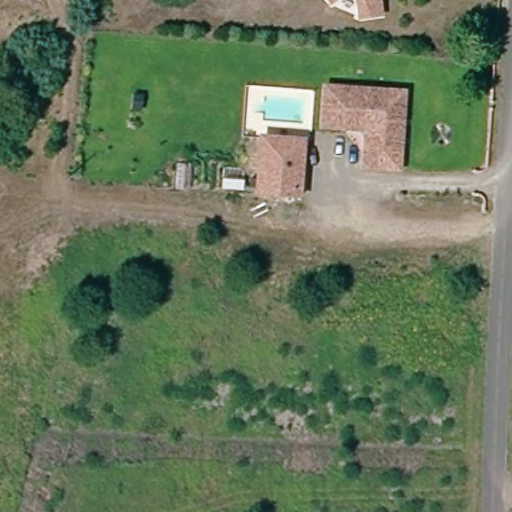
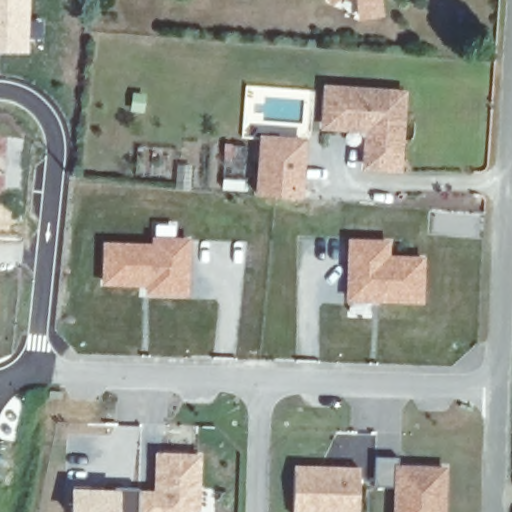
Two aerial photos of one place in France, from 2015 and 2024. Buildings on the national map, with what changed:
new [(26,52),(0,51),(0,0),(28,0),(26,52)]
unchanged [(327,3),(325,0),(330,0),(327,3)]
unchanged [(376,14),(356,17),(354,0),(374,0),(376,14)]
unchanged [(399,169),(366,167),(368,137),(361,128),(325,126),(327,89),(386,93),(385,110),(391,117),(402,118),(399,169)]
unchanged [(300,199),(260,196),(263,138),(303,141),(300,199)]
new [(106,245),(155,247),(155,239),(189,241),(187,277),(174,276),(173,293),(149,292),(150,279),(141,279),(140,283),(105,282),(106,245)]
new [(351,241),(368,242),(368,257),(423,259),(422,302),(381,300),(381,295),(373,295),(373,300),(350,299),(351,241)]
new [(195,512),(139,512),(140,494),(157,494),(159,456),(200,457),(197,510),(195,512)]
new [(375,487),(376,457),(399,458),(399,468),(445,470),(444,512),(396,512),(397,488),(375,487)]
new [(359,512),(294,512),(295,467),(360,469),(359,512)]
new [(140,488),(140,494),(139,512),(70,512),(70,488),(119,489),(140,488)]

